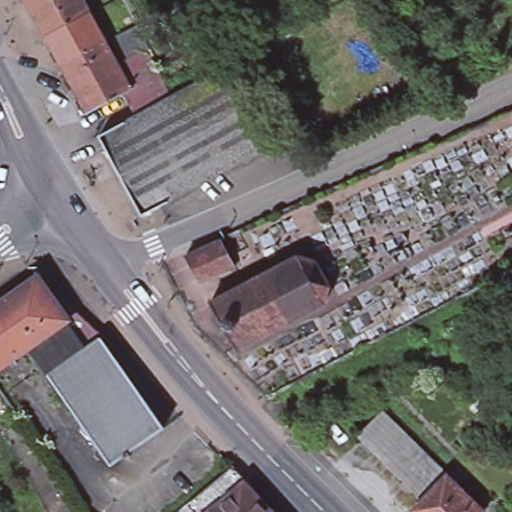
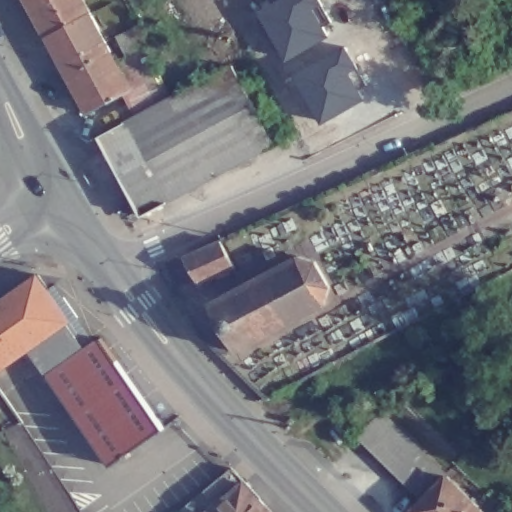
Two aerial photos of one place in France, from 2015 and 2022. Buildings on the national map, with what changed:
unchanged [(25,4),(23,0),(33,0),(25,4)]
unchanged [(33,0),(80,0),(89,17),(45,41),(25,4),(33,0)]
new [(275,0),(318,0),(329,19),(320,23),(325,32),(286,55),(260,10),(275,0)]
unchanged [(89,17),(104,46),(60,69),(45,41),(89,17)]
new [(343,45),(365,81),(356,86),(361,95),(323,117),(296,72),(343,45)]
unchanged [(104,46),(118,70),(131,94),(123,99),(87,118),(60,69),(104,46)]
unchanged [(131,94),(118,70),(143,55),(169,102),(134,121),(123,99),(131,94)]
unchanged [(134,121),(169,102),(231,71),(274,150),(142,221),(99,141),(134,121)]
unchanged [(219,245),(234,271),(198,287),(183,262),(219,245)]
unchanged [(299,258),(314,263),(330,288),(326,306),(241,352),(213,305),(299,258)]
unchanged [(46,370),(27,343),(0,362),(0,298),(33,275),(83,346),(46,370)]
unchanged [(97,337),(159,428),(106,466),(43,373),(46,370),(83,346),(97,337)]
unchanged [(381,408),(420,447),(397,472),(358,433),(381,408)]
unchanged [(482,512),(415,512),(411,508),(422,497),(397,472),(420,447),(484,510),(482,512)]
unchanged [(231,467),(241,478),(244,482),(272,512),(176,512),(178,511),(231,467)]

